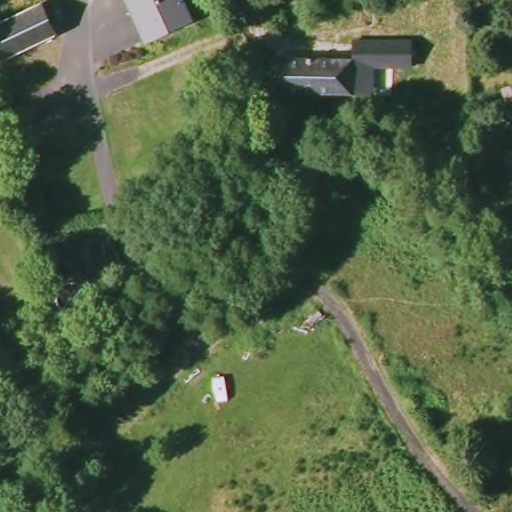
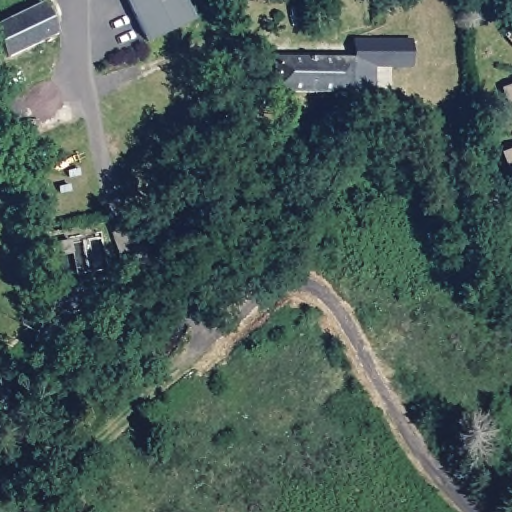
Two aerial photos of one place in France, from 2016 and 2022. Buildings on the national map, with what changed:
unchanged [(143,43),(123,0),(184,0),(193,20),(143,43)]
unchanged [(52,39),(6,60),(0,47),(0,25),(38,6),(52,39)]
unchanged [(358,66),(356,94),(275,91),(274,61),(352,62),(353,41),(366,41),(371,41),(412,43),(411,67),(370,66),(366,66),(358,66)]

